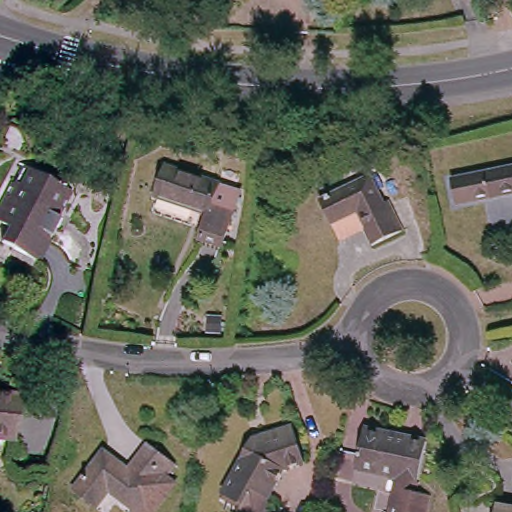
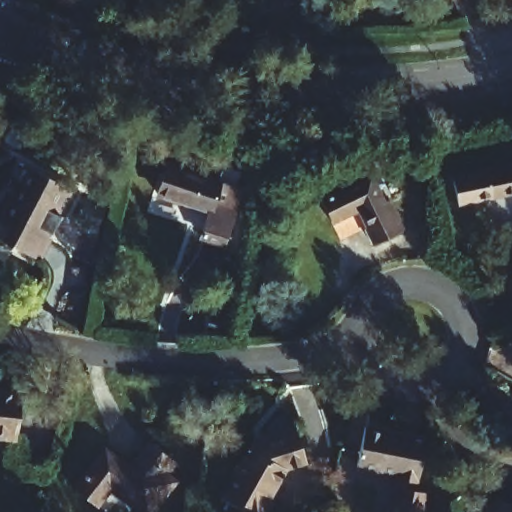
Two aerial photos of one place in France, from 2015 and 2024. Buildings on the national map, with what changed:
unchanged [(444,176),(512,162),(512,186),(485,192),(449,200),(444,176)]
unchanged [(16,180),(25,163),(61,181),(25,248),(0,237),(0,221),(2,218),(0,217),(0,186),(6,175),(16,180)]
unchanged [(206,222),(210,211),(165,194),(175,165),(240,189),(220,243),(201,237),(206,222)]
unchanged [(318,185),(370,170),(383,209),(388,208),(393,225),(360,235),(355,218),(360,216),(354,199),(324,208),(318,185)]
unchanged [(0,432),(0,387),(11,387),(6,432),(0,432)]
unchanged [(281,457),(264,486),(248,477),(237,493),(218,481),(239,446),(252,442),(260,429),(294,419),(302,451),(281,457)]
unchanged [(385,432),(421,441),(412,486),(427,490),(421,512),(386,512),(396,471),(354,460),(363,422),(386,427),(385,432)]
unchanged [(129,473),(147,441),(179,459),(173,470),(180,474),(180,478),(162,512),(141,512),(143,510),(117,495),(107,512),(99,512),(79,500),(102,458),(129,473)]
unchanged [(489,512),(489,510),(512,508),(512,512),(489,512)]
unchanged [(386,512),(381,512),(382,510),(386,512)]

